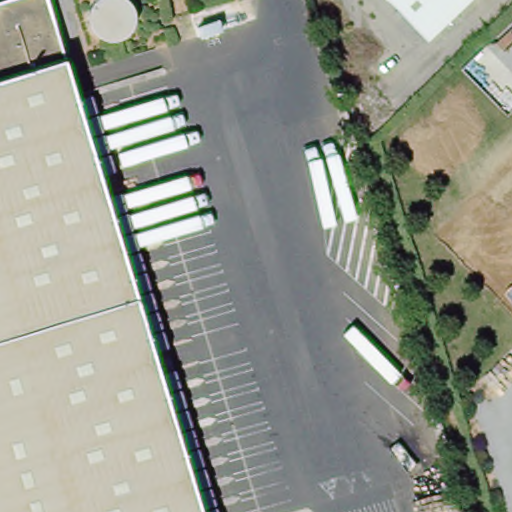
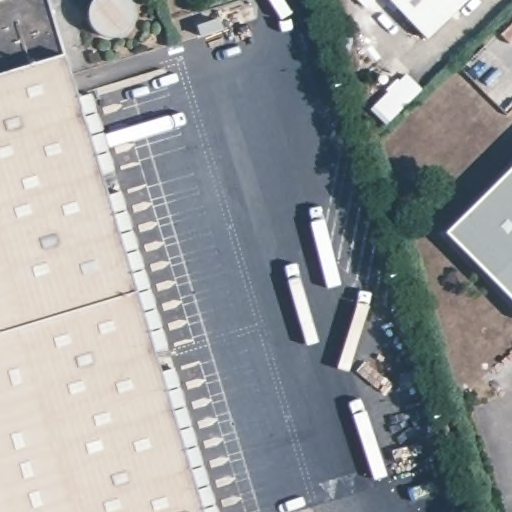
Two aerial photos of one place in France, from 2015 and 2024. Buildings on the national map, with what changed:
unchanged [(0,2),(8,0),(46,0),(200,512),(0,512),(0,2)]
unchanged [(96,0),(121,0),(126,2),(131,10),(133,18),(131,27),(126,34),(119,39),(109,41),(102,40),(96,37),(91,32),(88,25),(88,17),(89,9),(91,6),(96,0)]
unchanged [(381,0),(470,0),(423,45),(381,0)]
new [(445,234),(512,167),(512,298),(445,234)]

